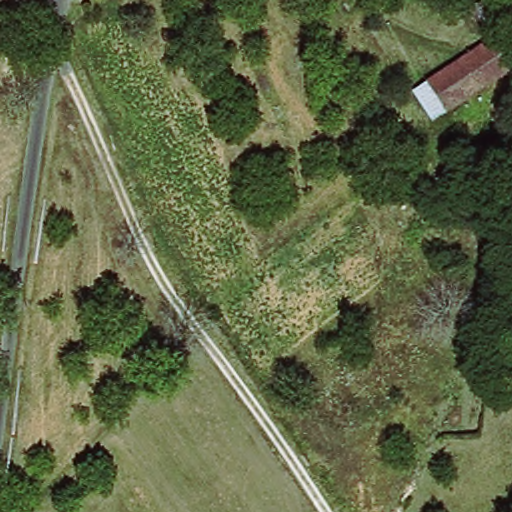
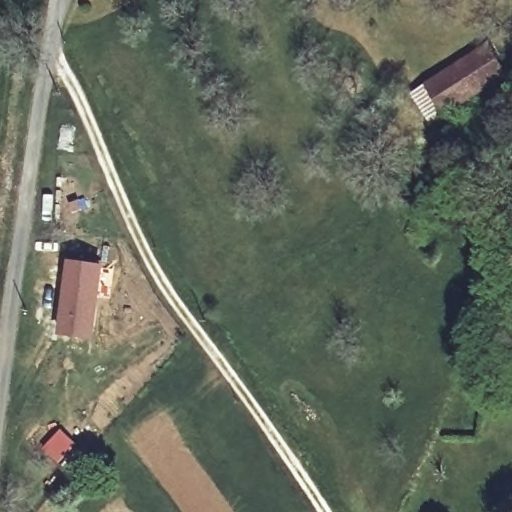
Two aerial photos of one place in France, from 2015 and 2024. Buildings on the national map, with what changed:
unchanged [(506,76),(429,124),(412,95),(487,48),(506,76)]
new [(66,258),(104,264),(94,340),(56,334),(66,258)]

